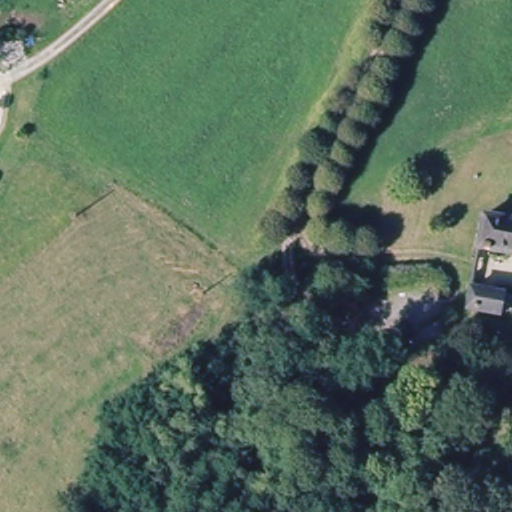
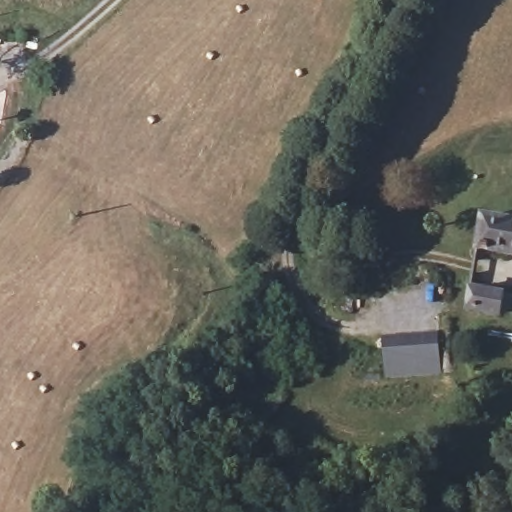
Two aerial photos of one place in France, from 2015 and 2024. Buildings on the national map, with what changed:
unchanged [(512,225),(512,261),(490,258),(488,270),(478,268),(480,260),(480,257),(487,221),(512,225)]
unchanged [(473,291),(505,298),(501,318),(468,313),(473,291)]
new [(438,330),(441,373),(385,378),(380,334),(438,330)]

